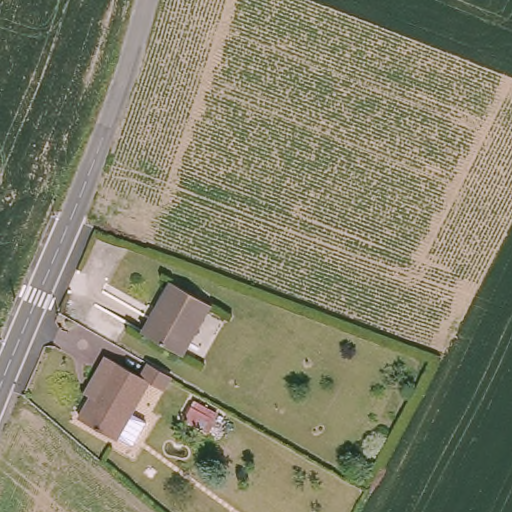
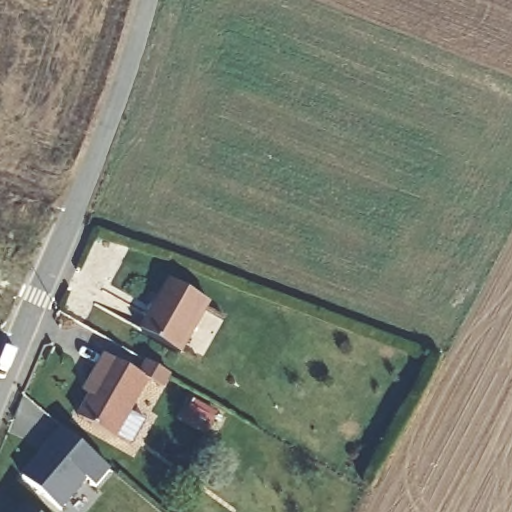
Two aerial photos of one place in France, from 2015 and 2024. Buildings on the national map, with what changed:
unchanged [(177,351),(138,329),(167,279),(207,302),(177,351)]
unchanged [(134,372),(142,358),(167,373),(157,388),(142,379),(111,438),(75,417),(87,396),(80,392),(87,378),(103,353),(134,372)]
unchanged [(187,420),(212,435),(198,460),(173,444),(187,420)]
new [(43,454),(48,457),(55,448),(52,444),(64,431),(112,471),(97,489),(87,481),(62,511),(23,478),(43,454)]
new [(21,510),(25,512),(20,512),(21,510)]

